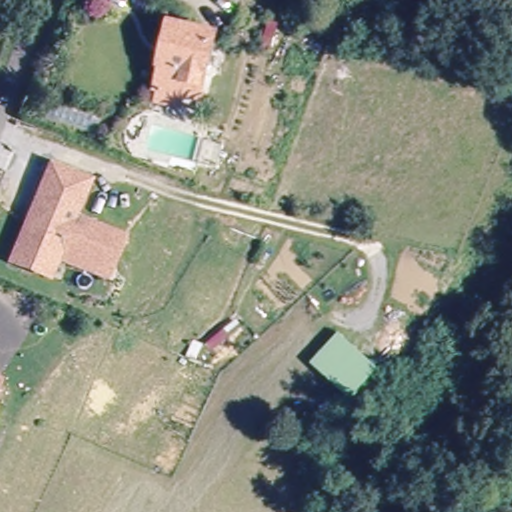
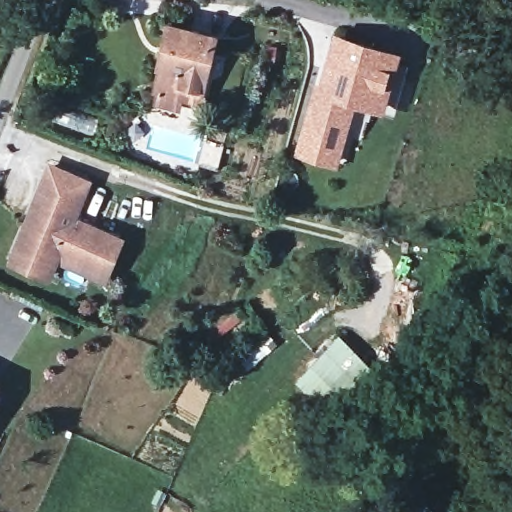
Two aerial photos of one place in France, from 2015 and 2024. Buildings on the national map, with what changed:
unchanged [(152,101),(155,89),(153,88),(158,65),(157,65),(166,25),(210,36),(198,92),(177,87),(176,93),(173,105),(152,101)]
new [(322,85),(336,32),(404,52),(385,115),(357,107),(340,167),(295,155),(317,82),(322,85)]
unchanged [(222,165),(209,163),(206,162),(212,135),(219,137),(227,139),(222,165)]
unchanged [(12,259),(18,245),(49,164),(85,178),(70,215),(119,235),(106,268),(58,250),(54,260),(48,273),(12,259)]

